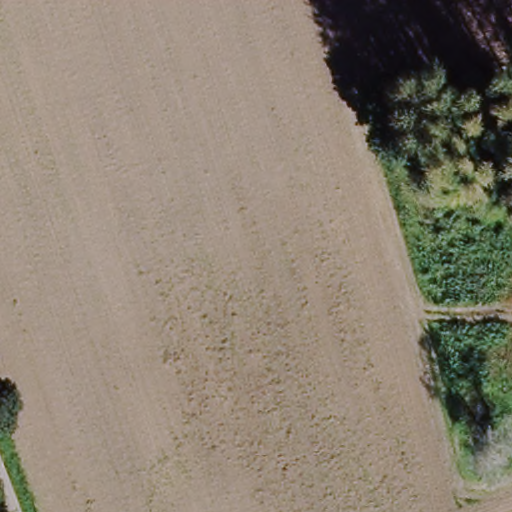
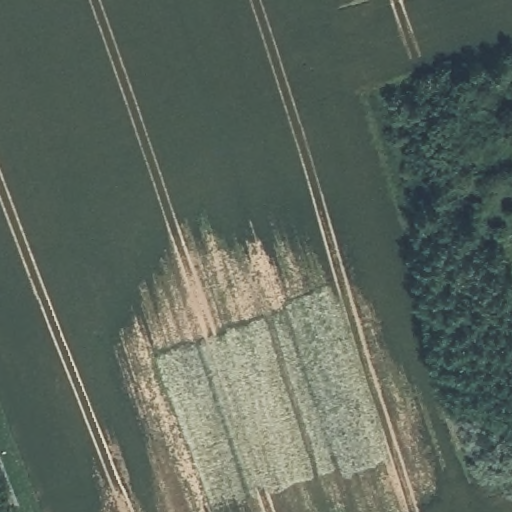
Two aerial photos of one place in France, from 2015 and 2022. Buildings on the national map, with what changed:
[]

